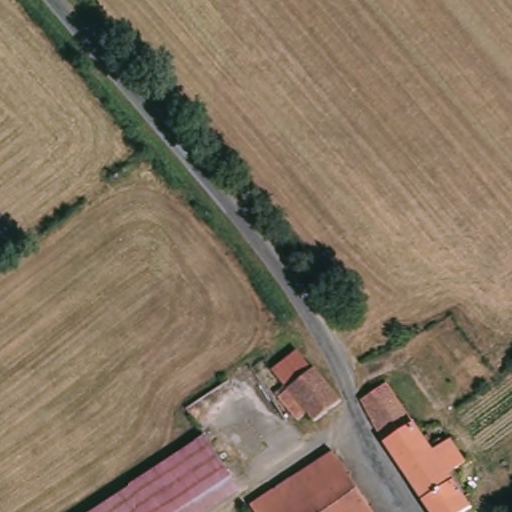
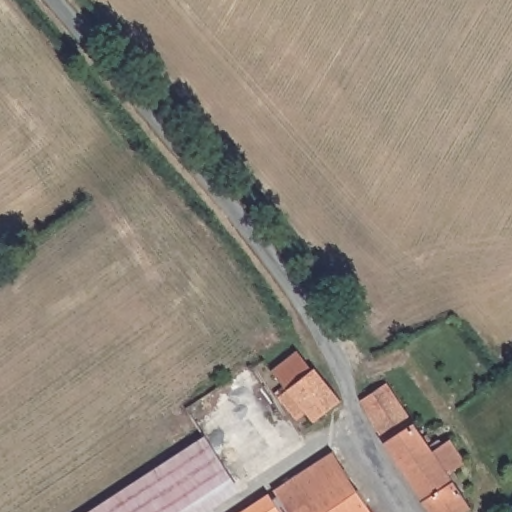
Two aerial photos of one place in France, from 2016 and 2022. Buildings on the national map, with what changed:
unchanged [(280,398),(288,392),(274,372),(297,354),(311,373),(314,371),(340,403),(338,404),(312,426),(305,430),(280,398)]
unchanged [(385,391),(419,439),(428,452),(438,446),(442,451),(449,447),(463,470),(449,479),(470,512),(429,512),(360,409),(385,391)]
unchanged [(201,437),(241,490),(208,512),(87,512),(201,437)]
unchanged [(337,454),(374,512),(258,512),(255,508),(337,454)]

